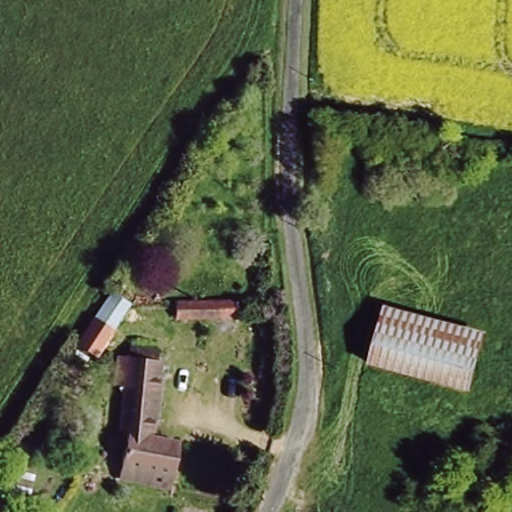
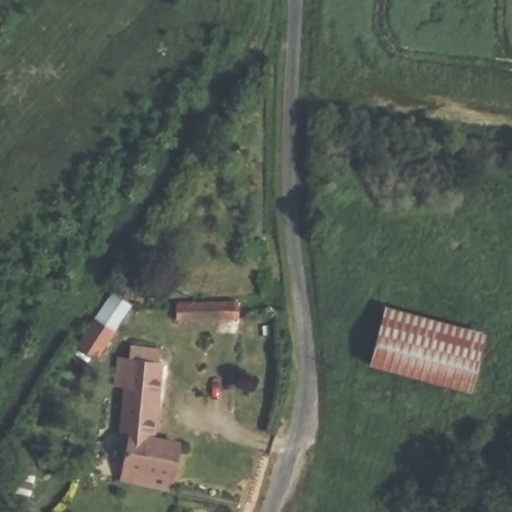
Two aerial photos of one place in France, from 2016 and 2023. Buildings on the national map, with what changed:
unchanged [(78,345),(97,318),(115,294),(130,306),(113,330),(95,357),(78,345)]
unchanged [(385,298),(487,328),(475,391),(363,362),(385,298)]
unchanged [(175,303),(238,302),(239,317),(175,318),(175,303)]
unchanged [(157,397),(155,440),(176,442),(170,485),(122,478),(125,449),(120,449),(125,387),(117,387),(119,357),(130,357),(131,347),(160,348),(158,362),(161,362),(161,366),(170,366),(168,380),(160,379),(160,397),(157,397)]

